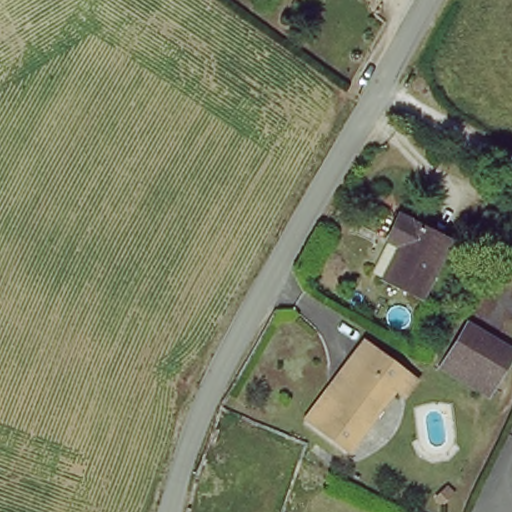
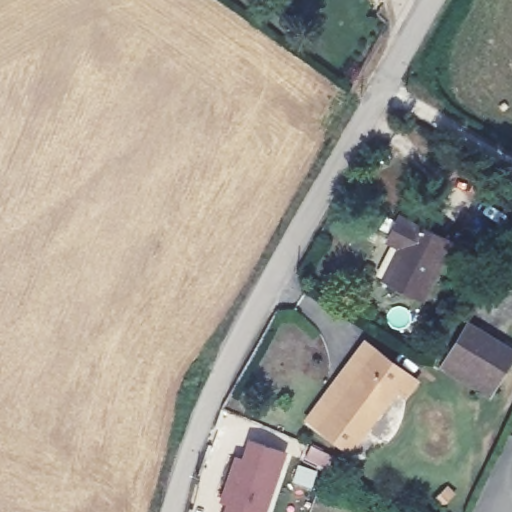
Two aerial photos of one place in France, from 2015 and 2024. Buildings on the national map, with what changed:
unchanged [(457,243),(420,297),(384,275),(406,243),(395,235),(410,213),(457,243)]
unchanged [(512,344),(512,349),(487,393),(466,381),(450,371),(452,368),(479,322),(512,344)]
unchanged [(316,411),(360,344),(374,353),(330,421),(316,411)]
unchanged [(387,362),(402,371),(417,378),(407,394),(394,387),(360,440),(330,421),(374,353),(387,362)]
new [(219,500),(235,454),(242,456),(248,438),(288,450),(266,512),(223,512),(226,503),(219,500)]

